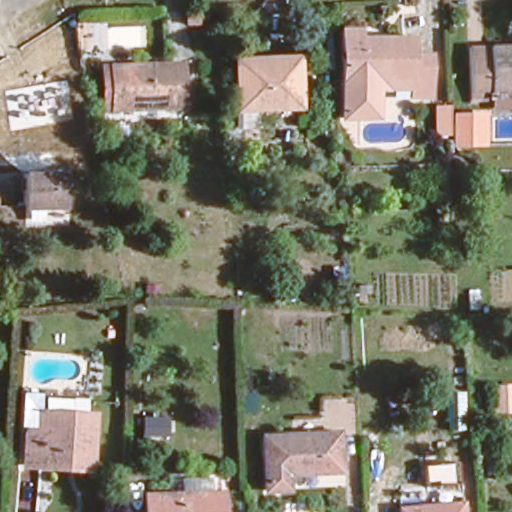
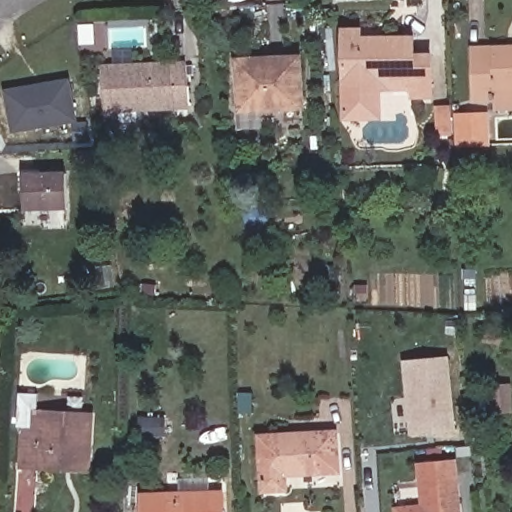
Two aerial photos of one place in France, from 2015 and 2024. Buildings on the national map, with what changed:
unchanged [(335,21),(351,20),(352,37),(401,34),(402,48),(421,47),(423,91),(404,93),(403,72),(365,74),(366,106),(337,106),(335,21)]
unchanged [(497,90),(468,91),(468,34),(512,34),(512,99),(497,99),(497,90)]
unchanged [(230,52),(291,50),(294,97),(232,100),(230,52)]
unchanged [(170,56),(171,100),(108,101),(107,57),(170,56)]
new [(11,132),(4,89),(69,78),(76,120),(11,132)]
new [(488,146),(452,147),(452,136),(435,136),(434,105),(451,104),(451,112),(487,111),(488,146)]
unchanged [(17,205),(15,168),(61,168),(62,204),(17,205)]
new [(401,360),(448,355),(455,431),(408,435),(401,360)]
unchanged [(25,473),(28,434),(23,433),(25,398),(48,399),(48,406),(96,408),(92,476),(25,473)]
unchanged [(286,463),(286,485),(257,483),(257,428),(328,430),(329,463),(286,463)]
new [(394,512),(393,505),(421,503),(417,462),(456,458),(461,512),(394,512)]
unchanged [(215,512),(136,512),(136,483),(215,486),(215,512)]
demolished [(461,499),(462,512),(399,512),(398,498),(461,499)]

